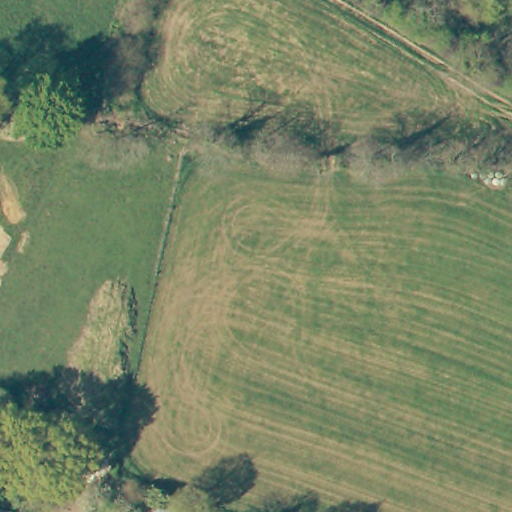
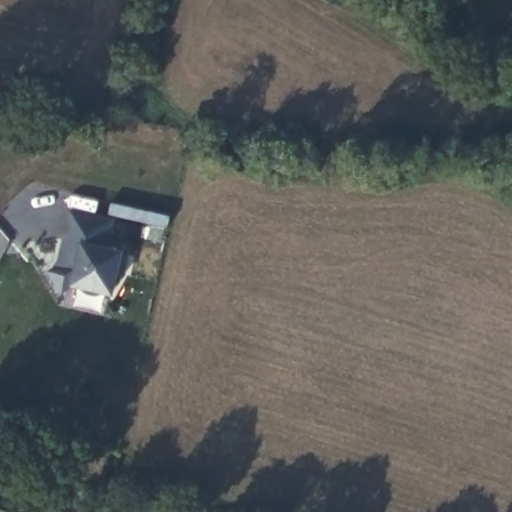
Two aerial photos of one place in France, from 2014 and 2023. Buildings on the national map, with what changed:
new [(115,217),(107,245),(125,249),(115,296),(106,294),(96,295),(89,294),(82,290),(79,287),(72,286),(61,293),(45,273),(55,266),(70,208),(115,217)]

